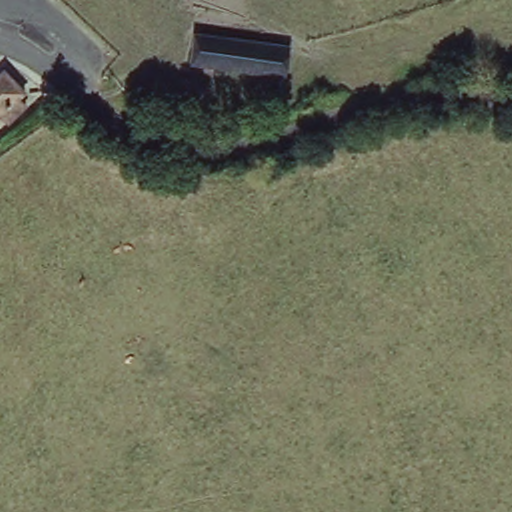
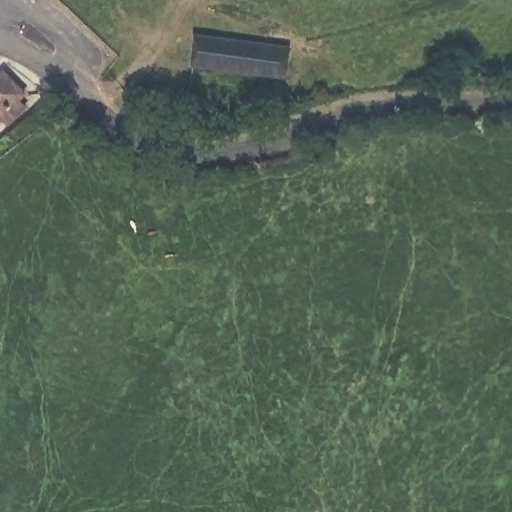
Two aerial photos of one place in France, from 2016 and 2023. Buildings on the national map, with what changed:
unchanged [(288,47),(287,77),(196,70),(200,41),(288,47)]
unchanged [(24,95),(15,102),(20,111),(4,123),(0,119),(0,77),(6,72),(24,95)]

